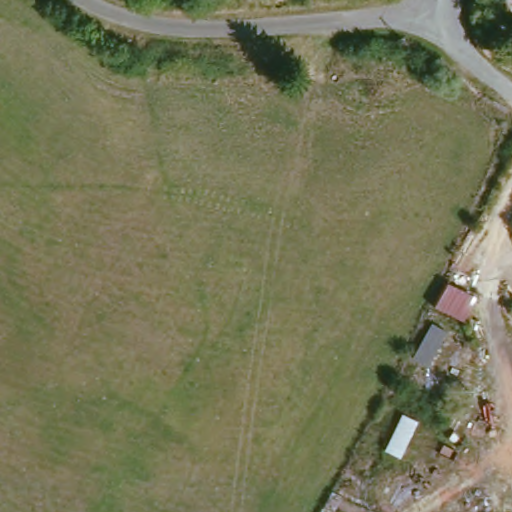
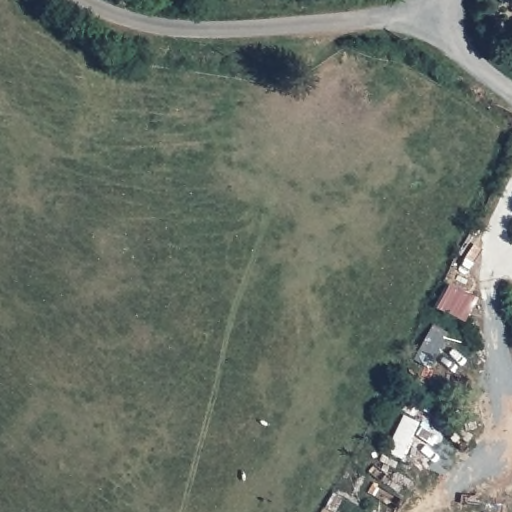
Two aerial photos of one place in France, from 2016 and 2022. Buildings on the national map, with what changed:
unchanged [(433,306),(445,284),(473,298),(462,321),(433,306)]

